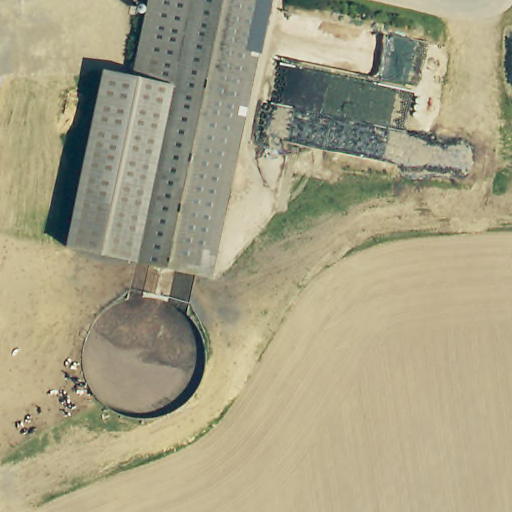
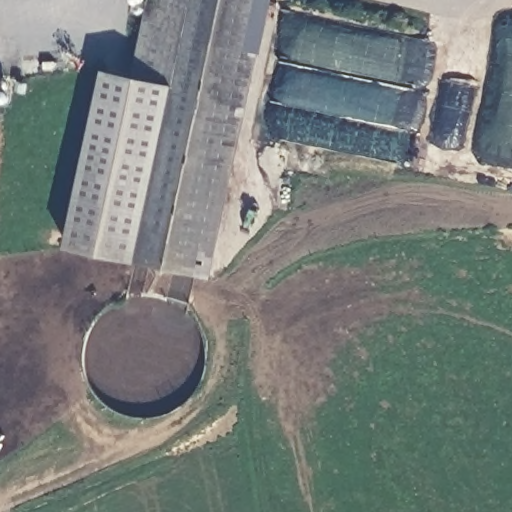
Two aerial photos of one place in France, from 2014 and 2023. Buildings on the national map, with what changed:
unchanged [(255,0),(197,273),(67,245),(105,70),(134,77),(150,0),(255,0)]
unchanged [(0,81),(0,78),(1,79),(0,81)]

